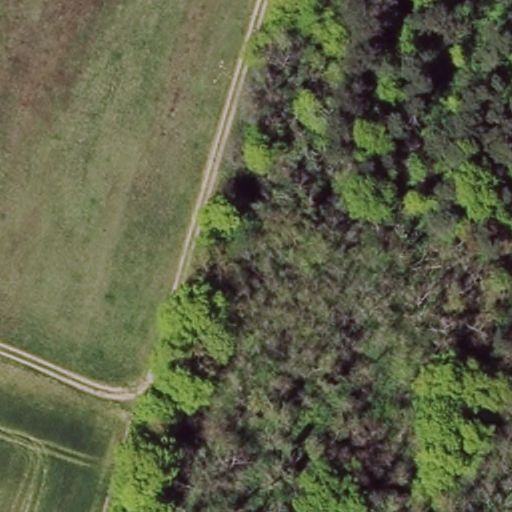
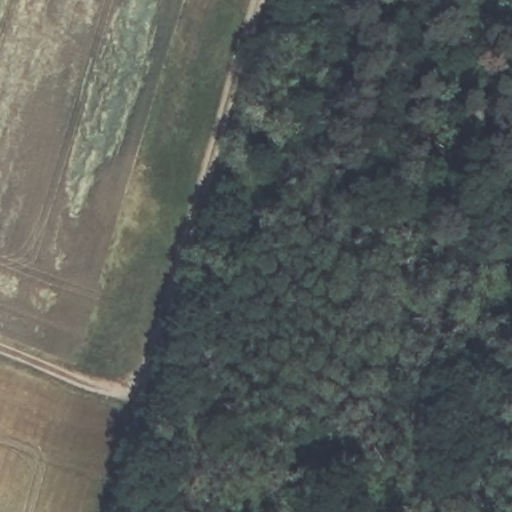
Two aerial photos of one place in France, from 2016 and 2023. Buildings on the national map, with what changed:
unchanged [(512,245),(511,246),(491,237),(501,205),(512,210),(512,245)]

